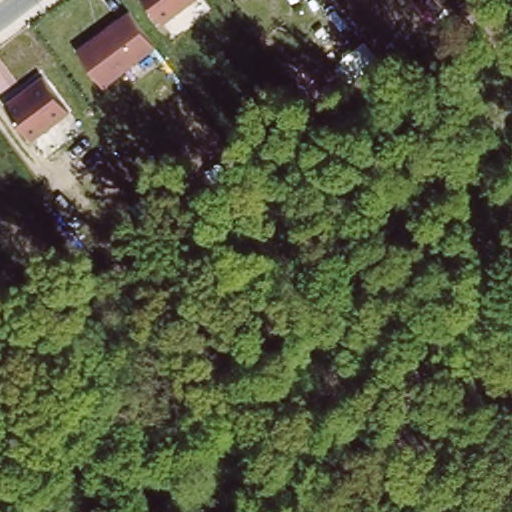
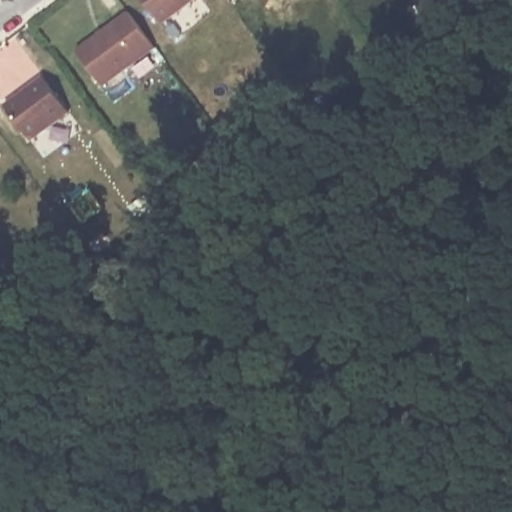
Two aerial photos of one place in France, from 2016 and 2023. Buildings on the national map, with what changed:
unchanged [(162,24),(143,0),(196,0),(162,24)]
unchanged [(74,50),(127,10),(157,48),(103,87),(74,50)]
unchanged [(33,142),(3,104),(42,75),(71,113),(33,142)]

